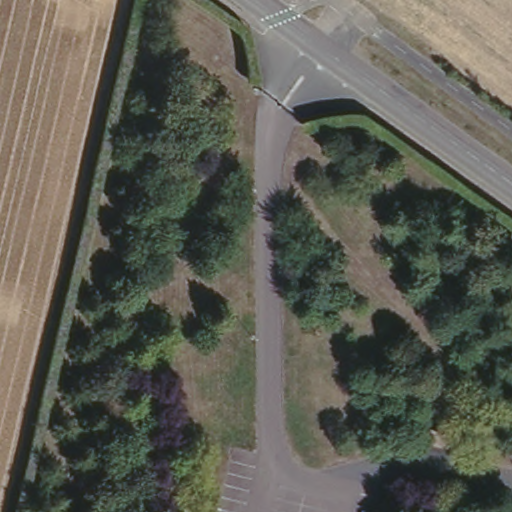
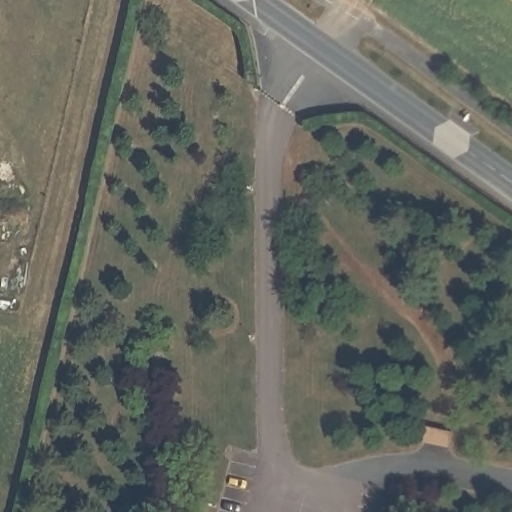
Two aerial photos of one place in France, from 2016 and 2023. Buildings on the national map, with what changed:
unchanged [(448,446),(422,441),(426,426),(451,431),(448,446)]

